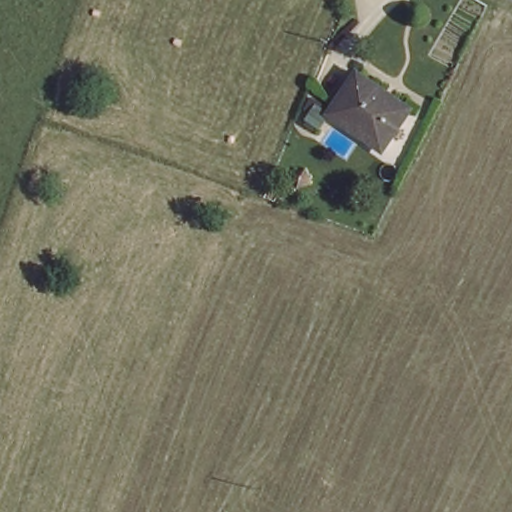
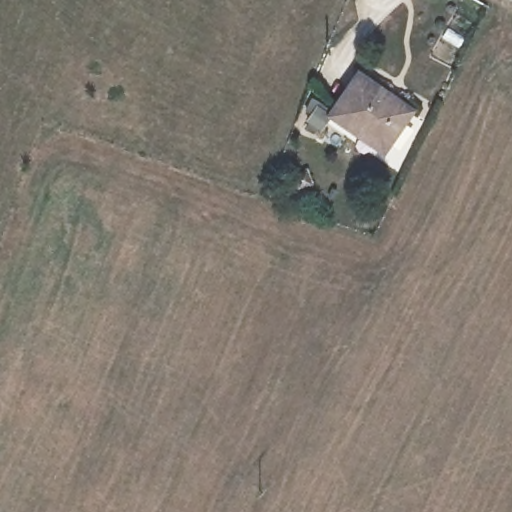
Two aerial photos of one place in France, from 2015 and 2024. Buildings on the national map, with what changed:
unchanged [(330,110),(361,68),(413,103),(393,134),(386,144),(352,123),(330,110)]

